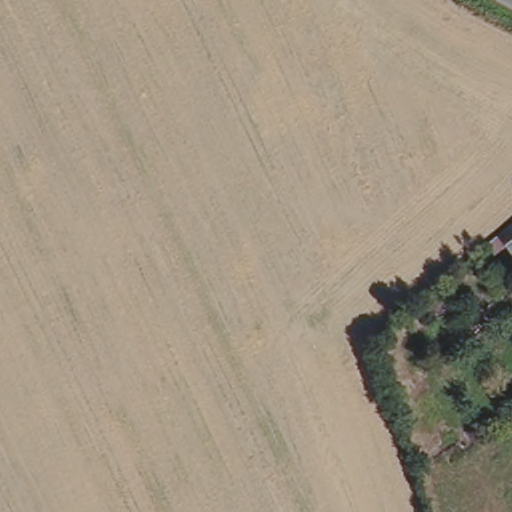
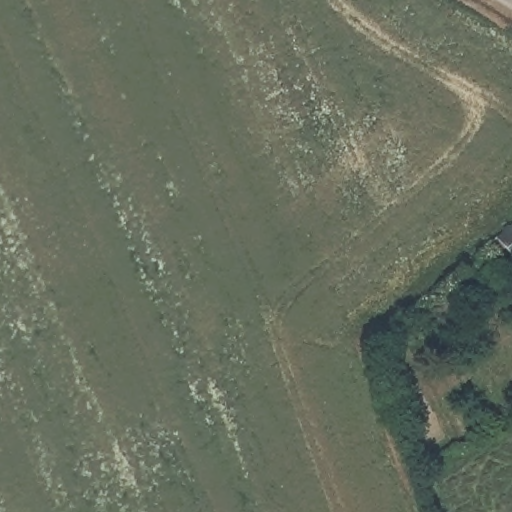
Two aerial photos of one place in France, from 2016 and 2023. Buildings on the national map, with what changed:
unchanged [(506,247),(496,256),(489,245),(512,226),(512,253),(506,247)]

